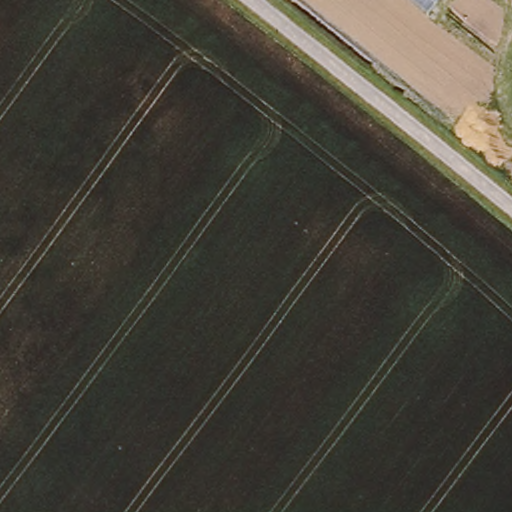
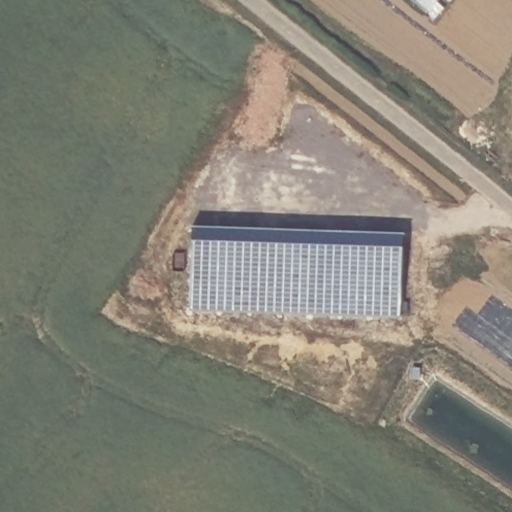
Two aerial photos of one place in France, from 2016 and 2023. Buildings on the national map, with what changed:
unchanged [(412,0),(437,0),(427,12),(412,0)]
new [(403,318),(191,311),(194,228),(406,234),(403,318)]

